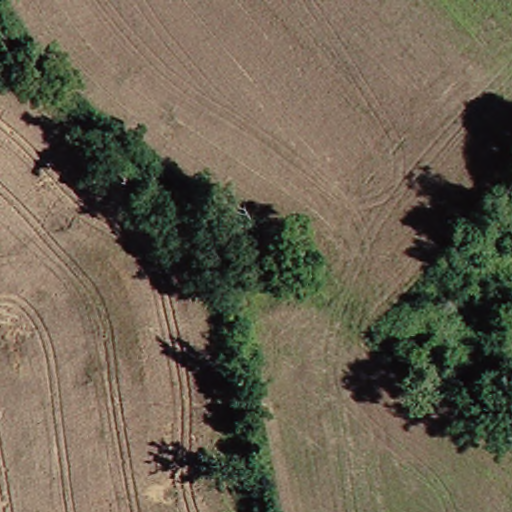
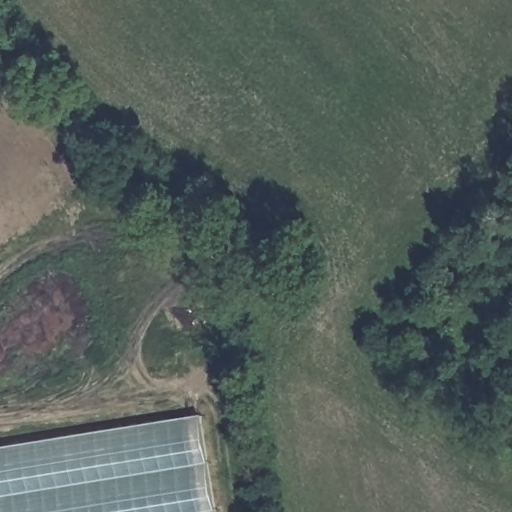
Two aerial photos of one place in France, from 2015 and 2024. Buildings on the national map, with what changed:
new [(202,412),(217,512),(0,512),(0,447),(202,412)]

